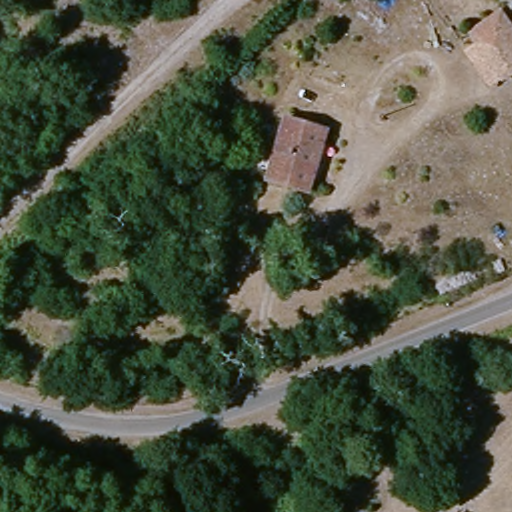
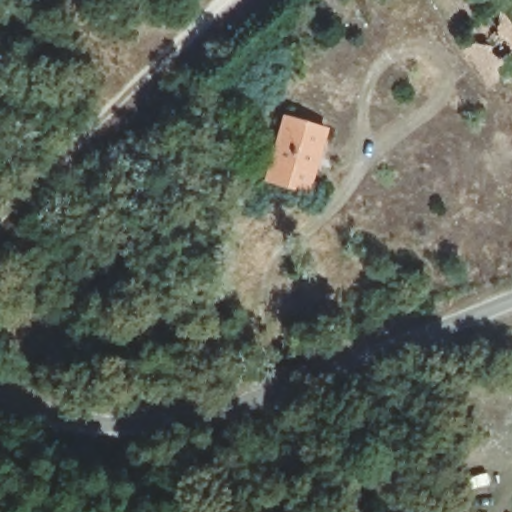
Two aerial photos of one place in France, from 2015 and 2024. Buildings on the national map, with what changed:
unchanged [(469,34),(504,12),(512,25),(512,73),(497,83),(488,89),(460,40),(469,34)]
unchanged [(307,191),(266,176),(285,115),(327,131),(307,191)]

